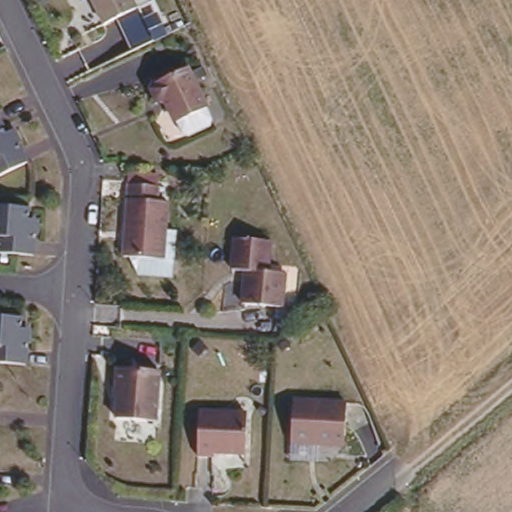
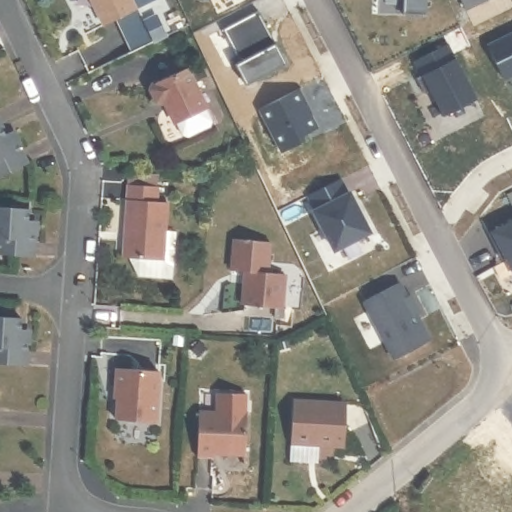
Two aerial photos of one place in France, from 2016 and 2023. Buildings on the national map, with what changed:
unchanged [(137,9),(105,25),(91,0),(132,0),(137,9)]
new [(427,14),(404,13),(405,0),(427,0),(427,14)]
new [(466,6),(463,0),(478,0),(466,6)]
new [(260,10),(288,64),(247,85),(237,64),(242,61),(224,29),(260,10)]
new [(425,70),(417,60),(448,45),(456,58),(475,97),(444,113),(425,70)]
unchanged [(162,100),(157,99),(154,94),(156,89),(160,86),(192,68),(212,106),(182,120),(169,97),(162,100)]
new [(319,132),(282,150),(260,108),(295,89),(319,132)]
unchanged [(32,165),(0,181),(0,121),(9,138),(17,135),(23,146),(32,165)]
new [(342,177),(350,192),(351,191),(371,230),(336,248),(316,209),(317,209),(310,193),(342,177)]
unchanged [(161,189),(158,206),(167,206),(162,260),(125,257),(127,186),(161,189)]
unchanged [(37,223),(36,235),(34,258),(0,256),(0,209),(28,211),(27,222),(37,223)]
new [(497,247),(490,232),(512,221),(512,265),(507,256),(503,258),(497,247)]
unchanged [(263,241),(259,271),(275,273),(273,306),(234,303),(237,266),(225,266),(227,237),(263,241)]
new [(401,280),(408,294),(412,292),(421,310),(417,312),(431,338),(396,356),(366,298),(401,280)]
unchanged [(21,331),(31,332),(30,344),(29,367),(0,364),(0,317),(22,319),(21,331)]
unchanged [(165,371),(162,424),(120,421),(122,388),(116,388),(118,367),(165,371)]
unchanged [(348,399),(348,442),(293,439),(294,397),(348,399)]
unchanged [(246,404),(246,444),(215,444),(215,449),(201,448),(202,404),(246,404)]

